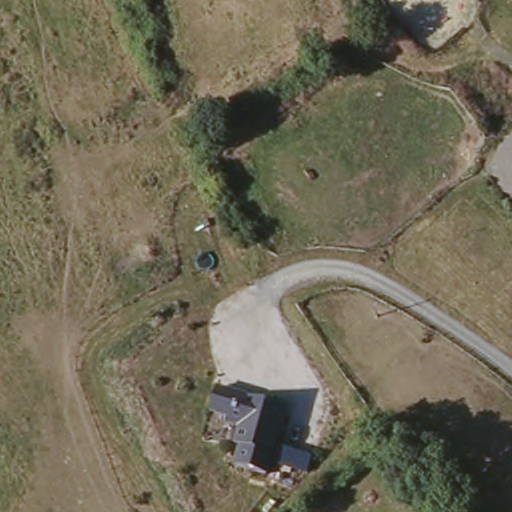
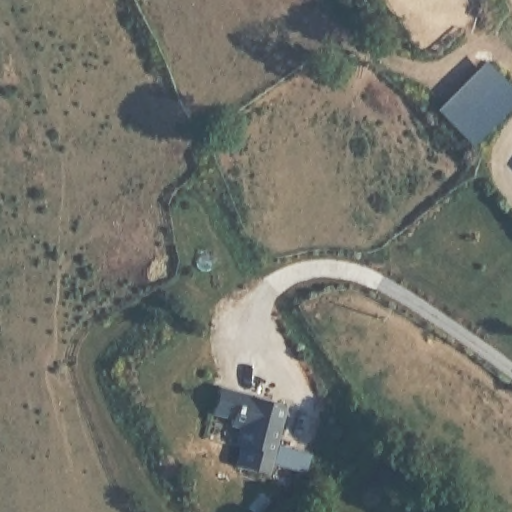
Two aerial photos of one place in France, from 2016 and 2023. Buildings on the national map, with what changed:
new [(512,88),(512,105),(471,144),(437,113),(488,64),(512,88)]
unchanged [(287,406),(269,475),(233,466),(241,427),(209,415),(217,386),(287,406)]

